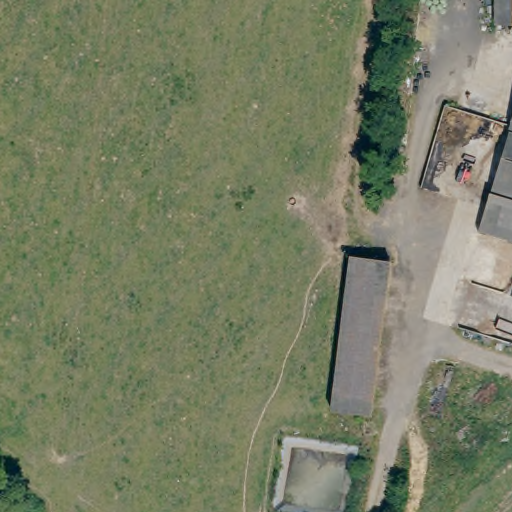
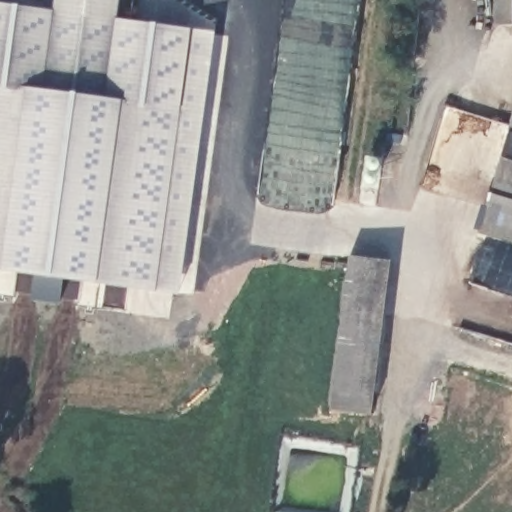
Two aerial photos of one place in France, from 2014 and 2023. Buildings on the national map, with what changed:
new [(52,10),(54,0),(121,0),(118,18),(213,31),(176,295),(0,271),(0,3),(52,10)]
unchanged [(491,0),(512,0),(512,26),(490,26),(491,0)]
unchanged [(512,136),(507,135),(512,120),(512,136)]
unchanged [(507,135),(512,136),(512,243),(479,232),(507,135)]
unchanged [(390,259),(370,412),(330,407),(349,254),(390,259)]

